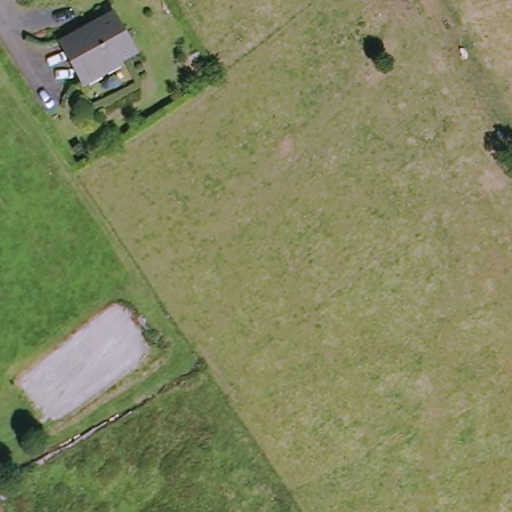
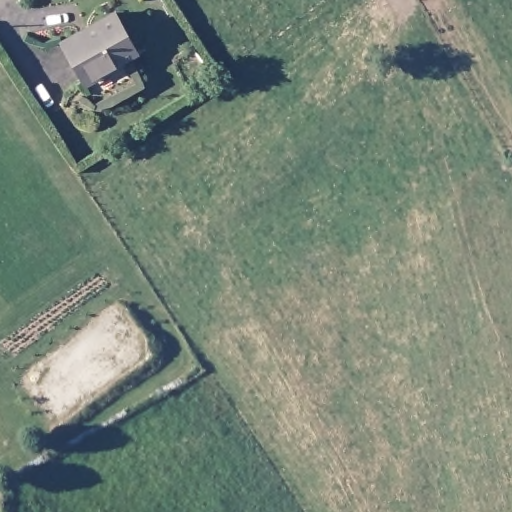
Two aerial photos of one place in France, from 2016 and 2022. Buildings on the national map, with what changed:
unchanged [(53,41),(105,14),(127,53),(75,81),(53,41)]

